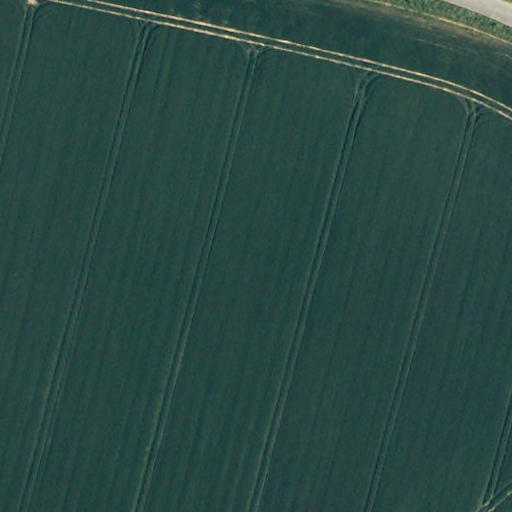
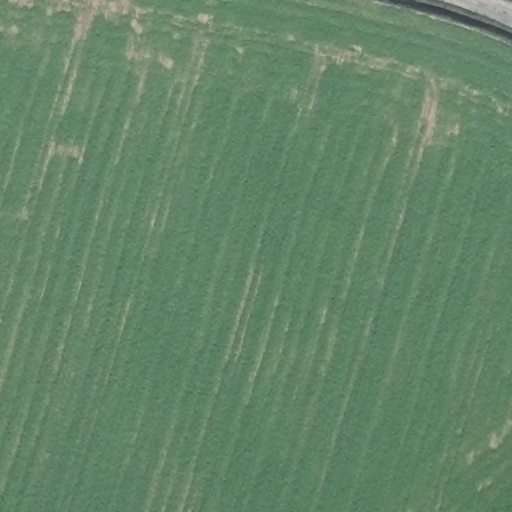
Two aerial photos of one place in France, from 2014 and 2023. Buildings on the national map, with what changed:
[]

